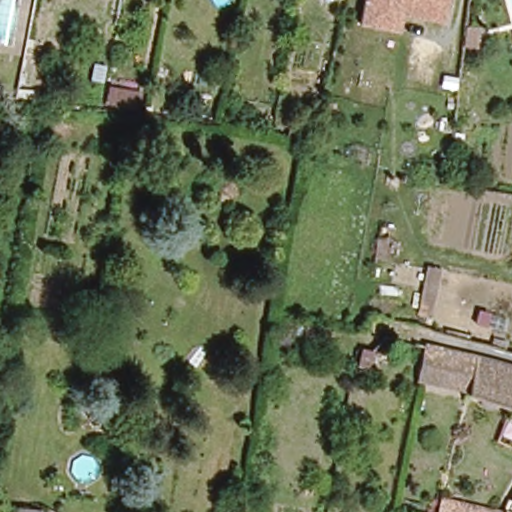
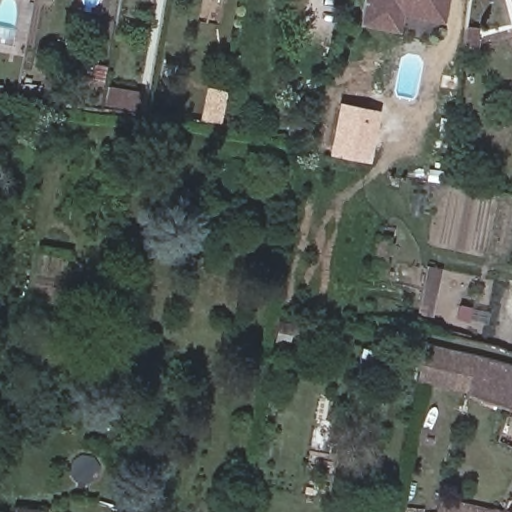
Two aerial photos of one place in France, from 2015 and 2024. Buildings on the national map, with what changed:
unchanged [(396,32),(360,26),(365,0),(448,0),(443,22),(403,14),(396,32)]
unchanged [(115,90),(146,95),(144,110),(143,115),(112,111),(112,105),(115,90)]
new [(380,110),(369,162),(328,155),(338,102),(380,110)]
unchanged [(433,316),(416,312),(426,263),(443,271),(433,316)]
unchanged [(366,358),(355,356),(357,346),(368,348),(366,358)]
unchanged [(472,380),(454,375),(452,385),(422,378),(426,346),(457,350),(477,355),(512,364),(512,397),(471,386),(472,380)]
unchanged [(512,405),(512,407),(511,406),(512,405)]
unchanged [(450,508),(453,492),(506,507),(509,503),(512,505),(512,512),(490,512),(470,510),(471,512),(439,512),(438,509),(450,508)]
unchanged [(45,510),(47,511),(50,512),(20,512),(20,506),(45,510)]

